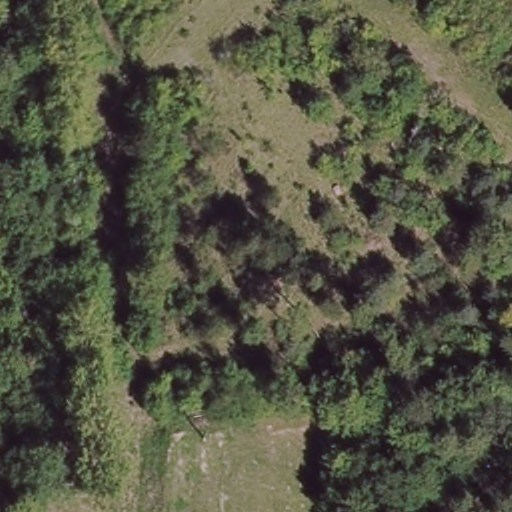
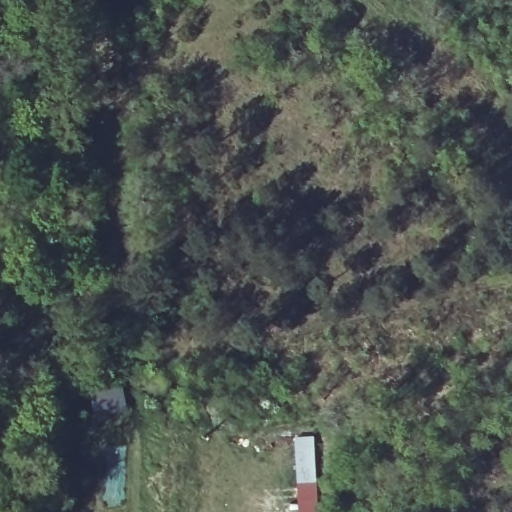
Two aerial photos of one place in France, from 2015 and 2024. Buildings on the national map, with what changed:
new [(316,438),(318,512),(300,512),(297,438),(316,438)]

